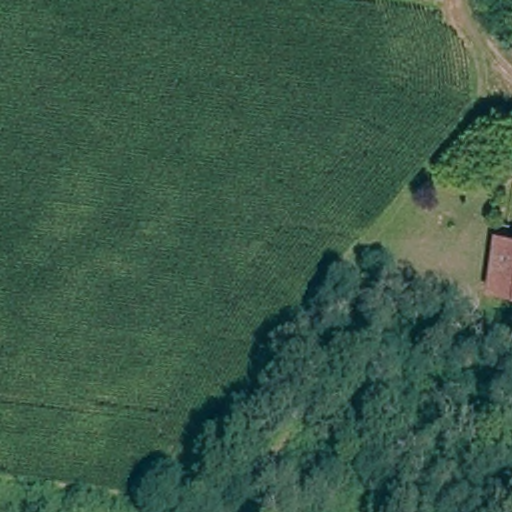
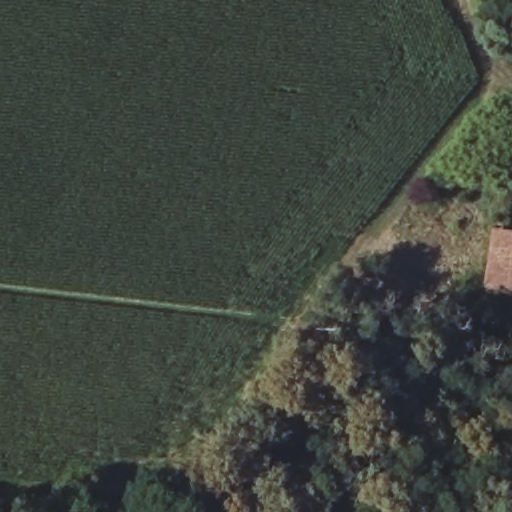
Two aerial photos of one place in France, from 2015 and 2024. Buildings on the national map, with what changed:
unchanged [(500,208),(510,209),(509,219),(512,219),(512,282),(491,279),(500,208)]

